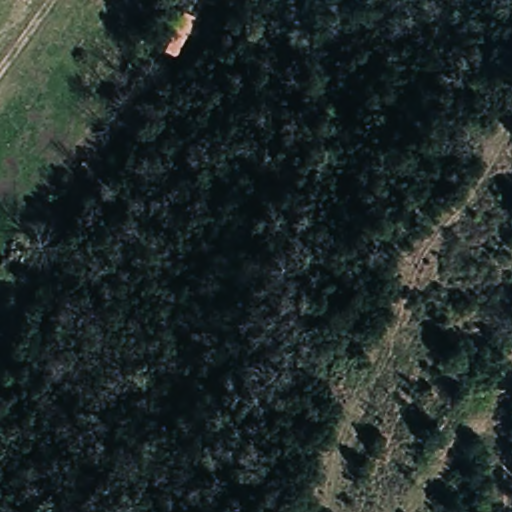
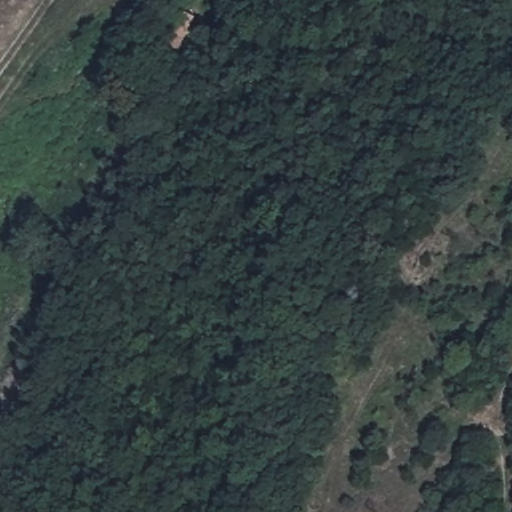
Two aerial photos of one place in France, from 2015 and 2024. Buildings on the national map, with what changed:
unchanged [(177,57),(163,50),(182,13),(196,19),(177,57)]

